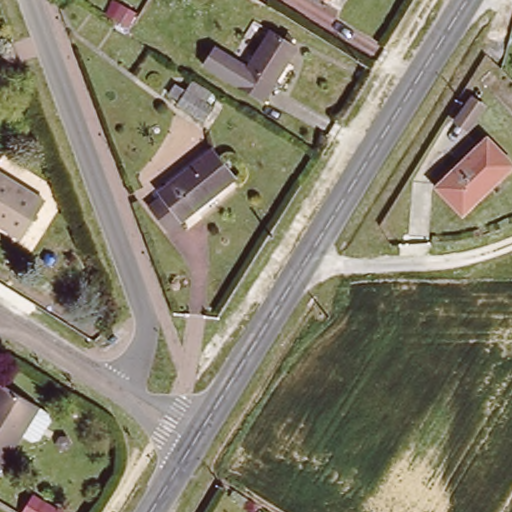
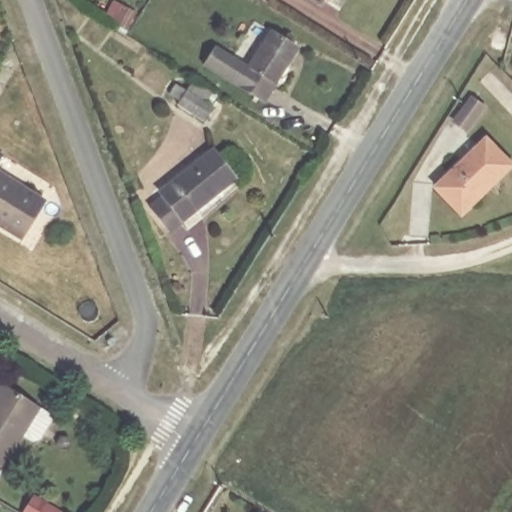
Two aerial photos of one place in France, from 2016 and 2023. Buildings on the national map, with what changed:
unchanged [(296,45),(263,104),(198,69),(214,45),(251,64),(267,32),(296,45)]
unchanged [(485,147),(507,173),(465,214),(452,202),(440,189),(465,166),(485,147)]
unchanged [(180,229),(160,208),(168,199),(165,195),(212,151),(235,177),(180,229)]
unchanged [(5,160),(0,167),(0,157),(5,160)]
unchanged [(22,241),(0,227),(0,180),(43,208),(22,241)]
unchanged [(2,389),(36,411),(0,466),(0,392),(2,389)]
unchanged [(33,494),(62,512),(22,512),(33,494)]

